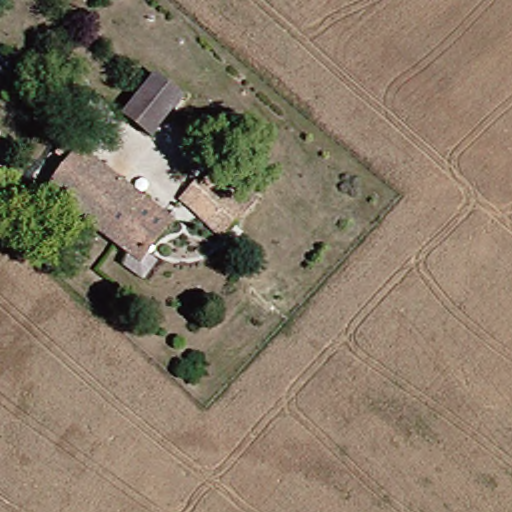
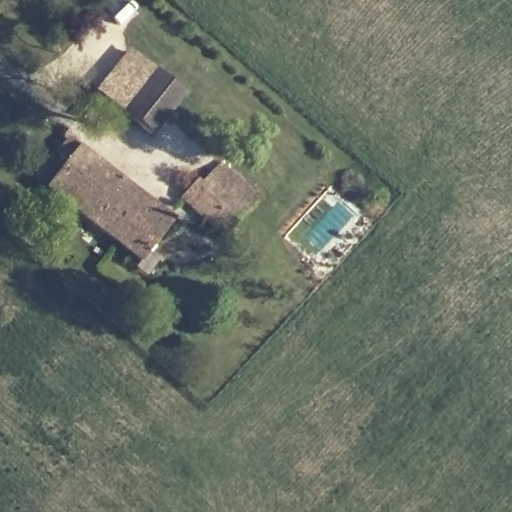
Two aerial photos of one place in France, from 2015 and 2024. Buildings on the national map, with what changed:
unchanged [(180,105),(145,142),(119,116),(154,80),(180,105)]
unchanged [(46,155),(55,145),(61,150),(67,143),(78,154),(162,222),(127,266),(41,196),(62,171),(46,155)]
unchanged [(211,237),(167,199),(201,160),(244,199),(211,237)]
unchanged [(263,216),(230,255),(211,237),(244,199),(263,216)]

